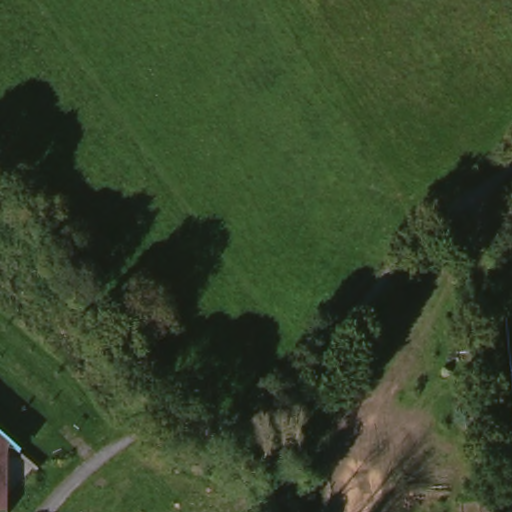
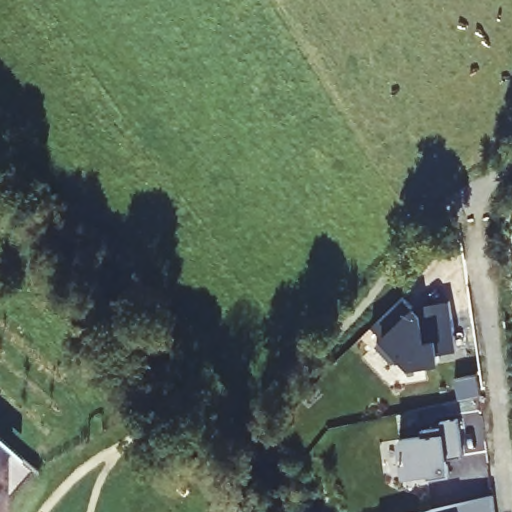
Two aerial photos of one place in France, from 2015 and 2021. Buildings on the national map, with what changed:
new [(415,306),(450,300),(451,306),(457,349),(439,352),(441,360),(411,365),(401,356),(394,363),(376,345),(383,338),(372,326),(404,296),(415,306)]
new [(423,436),(423,430),(442,427),(442,421),(459,419),(464,455),(448,457),(450,474),(428,477),(427,470),(406,473),(401,439),(423,436)]
unchanged [(9,448),(8,512),(0,512),(0,441),(9,448)]
new [(497,512),(416,512),(494,495),(497,512)]

